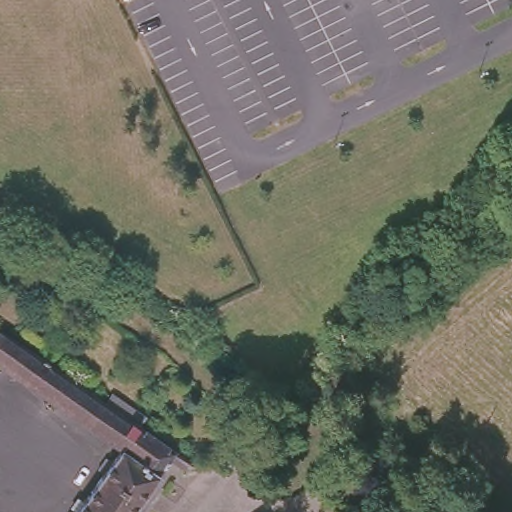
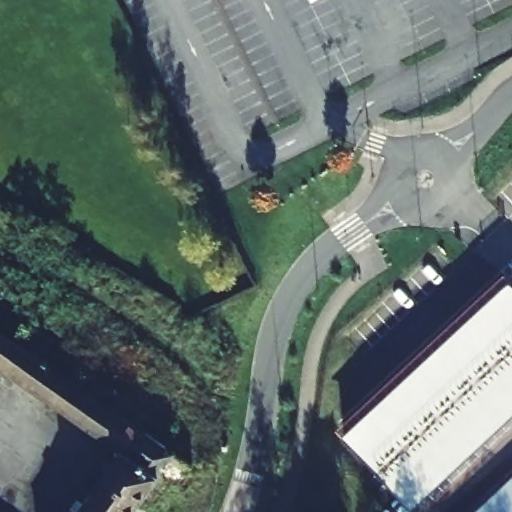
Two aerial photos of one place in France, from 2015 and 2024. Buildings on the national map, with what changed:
new [(512,414),(410,508),(343,434),(511,280),(512,281),(512,414)]
unchanged [(103,472),(98,468),(105,457),(111,461),(120,447),(0,365),(0,330),(48,363),(70,378),(168,444),(176,450),(160,473),(140,501),(133,512),(75,512),(103,472)]
new [(512,512),(474,512),(512,476),(512,512)]

